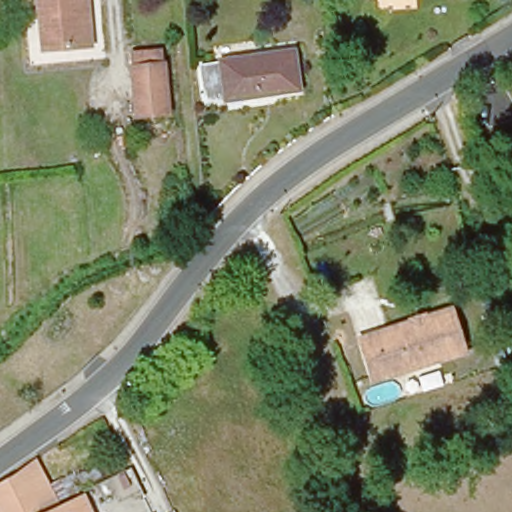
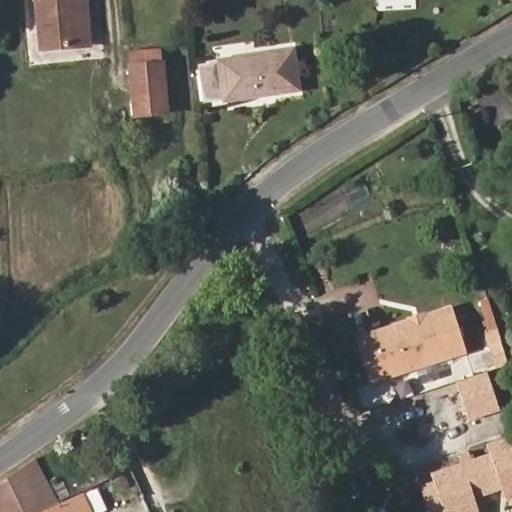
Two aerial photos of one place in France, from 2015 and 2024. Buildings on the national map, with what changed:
unchanged [(76,38),(46,41),(42,0),(86,0),(88,22),(89,37),(76,38)]
unchanged [(139,108),(134,59),(133,46),(165,43),(166,55),(171,105),(139,108)]
unchanged [(203,96),(198,62),(218,60),(217,55),(292,45),(298,85),(224,97),(223,94),(203,96)]
unchanged [(416,317),(426,314),(427,310),(455,301),(471,343),(444,353),(439,350),(418,356),(417,362),(379,376),(364,338),(361,332),(378,327),(414,315),(416,317)]
new [(488,373),(500,410),(470,420),(457,383),(488,373)]
new [(430,474),(490,454),(487,445),(509,437),(512,444),(512,498),(505,500),(501,488),(475,497),(480,512),(444,512),(443,511),(442,512),(428,512),(419,487),(433,482),(430,474)]
unchanged [(36,512),(0,512),(0,479),(29,460),(52,505),(36,512)]
unchanged [(52,505),(73,495),(82,512),(36,512),(52,505)]

